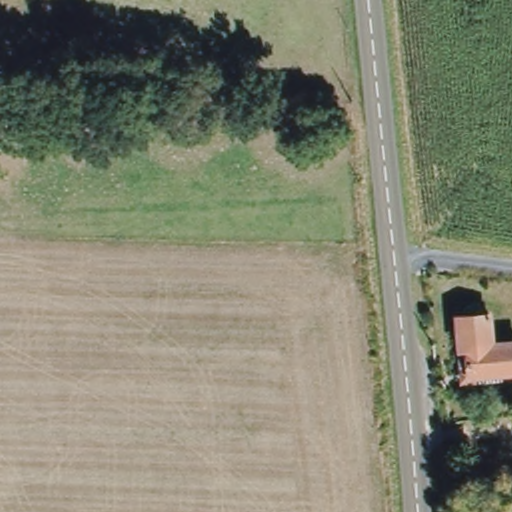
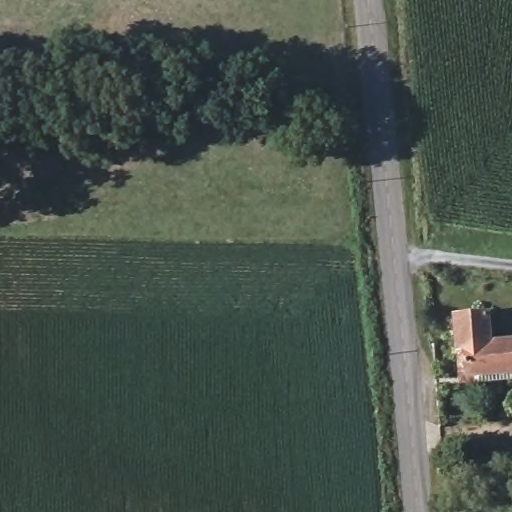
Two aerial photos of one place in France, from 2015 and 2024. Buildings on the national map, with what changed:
unchanged [(457,313),(488,312),(491,342),(512,341),(512,375),(461,379),(459,345),(457,313)]

